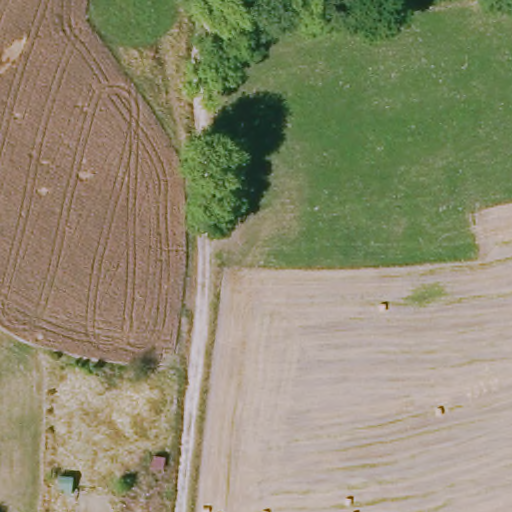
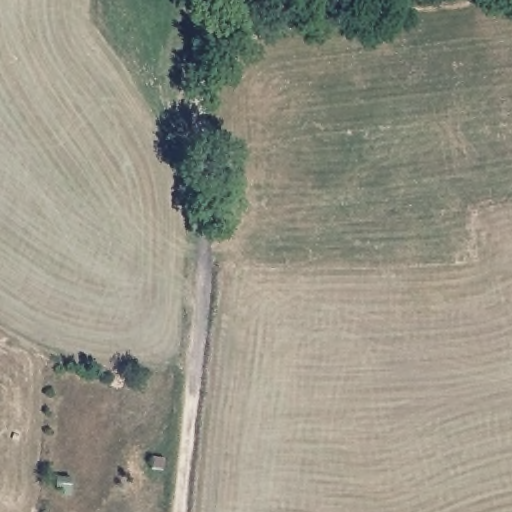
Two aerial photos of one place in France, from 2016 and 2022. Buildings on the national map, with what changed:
unchanged [(167,471),(162,512),(128,512),(132,467),(167,471)]

